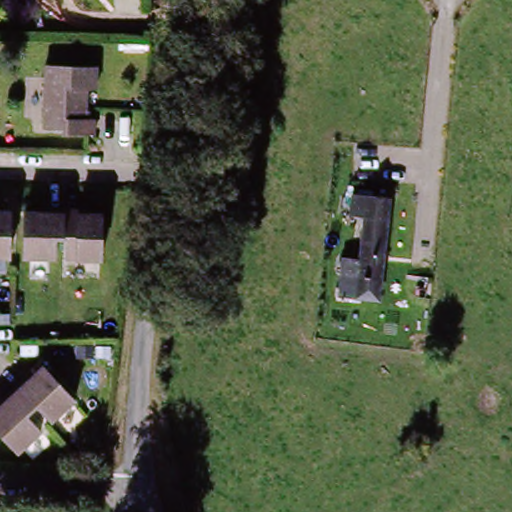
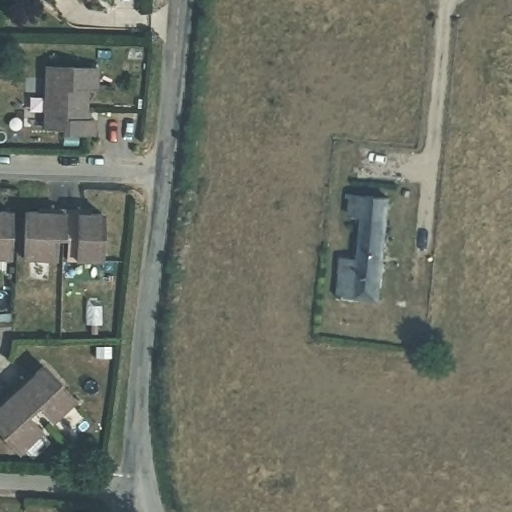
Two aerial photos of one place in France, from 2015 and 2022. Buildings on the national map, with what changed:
unchanged [(92,81),(85,81),(84,112),(91,113),(90,130),(60,129),(61,123),(42,122),(45,61),(92,64),(92,81)]
unchanged [(345,266),(362,269),(368,221),(349,219),(352,196),(371,199),(392,201),(380,298),(359,295),(342,293),(345,266)]
unchanged [(55,239),(54,257),(25,256),(25,211),(45,210),(45,207),(64,208),(62,238),(55,239)]
unchanged [(99,211),(98,259),(67,257),(67,238),(62,238),(64,208),(77,209),(77,213),(99,211)]
unchanged [(9,210),(9,257),(0,257),(0,210),(9,210)]
unchanged [(10,390),(21,380),(23,381),(38,367),(70,400),(50,422),(35,408),(30,412),(10,390)]
unchanged [(17,451),(0,432),(0,405),(2,403),(0,402),(0,400),(10,390),(30,412),(25,417),(38,433),(17,451)]

